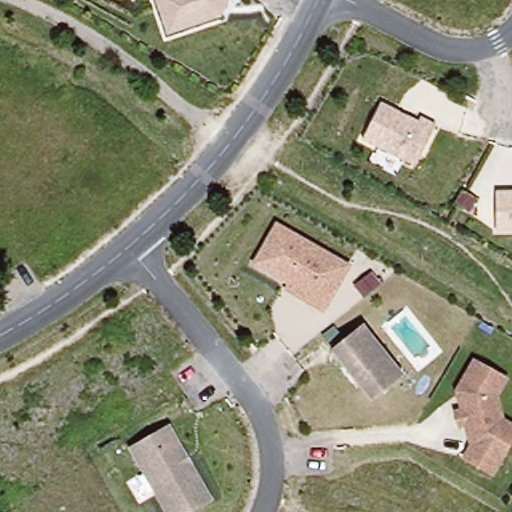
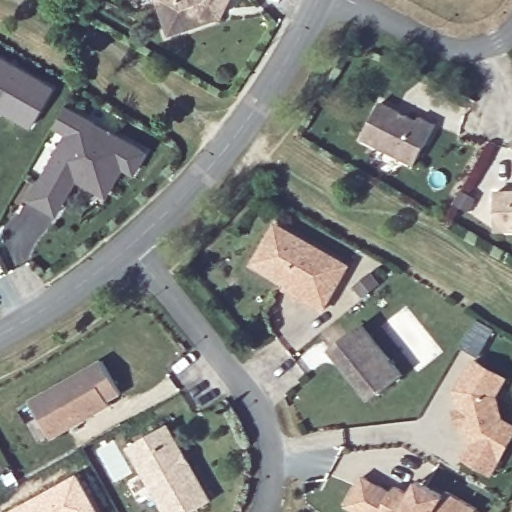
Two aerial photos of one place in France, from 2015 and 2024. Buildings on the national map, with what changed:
unchanged [(227,0),(220,15),(166,34),(154,0),(227,0)]
new [(56,87),(34,126),(0,107),(0,56),(56,87)]
unchanged [(380,103),(415,120),(418,115),(435,122),(415,166),(361,141),(380,103)]
new [(69,132),(55,125),(67,105),(95,121),(90,130),(102,136),(107,128),(145,150),(133,171),(121,165),(105,194),(91,186),(78,179),(57,215),(30,199),(43,177),(69,132)]
unchanged [(512,189),(512,233),(493,234),(493,190),(512,189)]
unchanged [(274,223),(350,265),(325,312),(285,291),(287,283),(252,262),(274,223)]
unchanged [(365,326),(404,377),(372,402),(333,351),(365,326)]
new [(100,361),(118,395),(105,402),(106,406),(49,439),(28,402),(100,361)]
unchanged [(492,478),(464,461),(471,447),(466,427),(460,430),(455,415),(463,413),(458,393),(476,363),(507,382),(497,400),(503,423),(512,429),(512,444),(510,446),(492,478)]
unchanged [(129,448),(167,427),(210,502),(193,512),(166,512),(129,448)]
new [(115,438),(132,472),(113,483),(94,450),(115,438)]
new [(78,471),(101,512),(5,512),(78,471)]
new [(342,507),(360,477),(388,494),(392,487),(407,496),(415,483),(422,487),(440,497),(443,493),(473,511),(472,512),(351,512),(342,507)]

